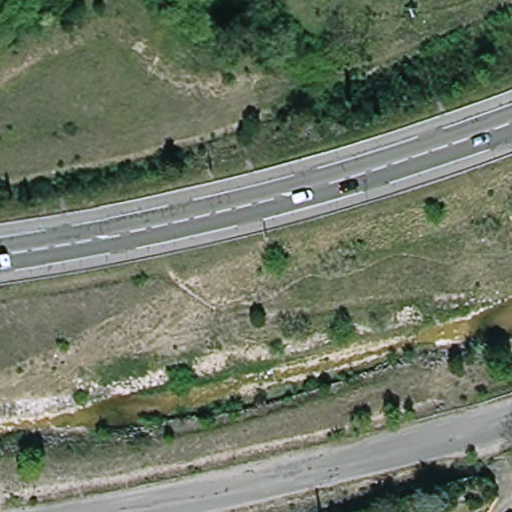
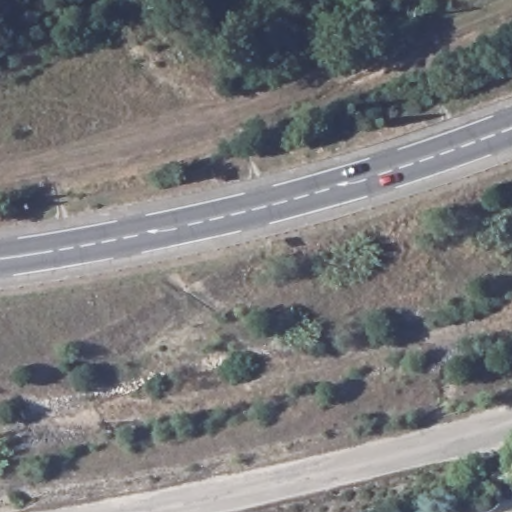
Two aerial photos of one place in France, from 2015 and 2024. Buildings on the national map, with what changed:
[]

